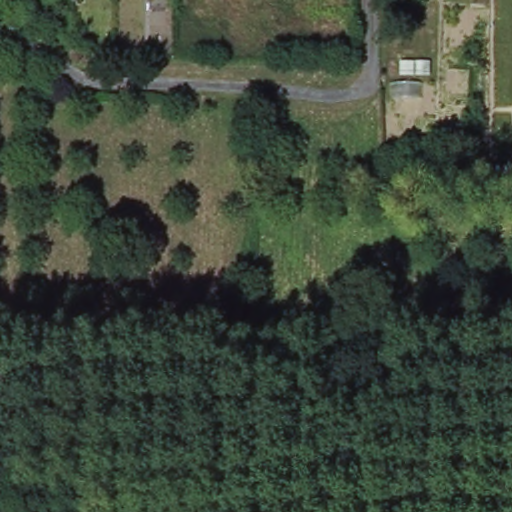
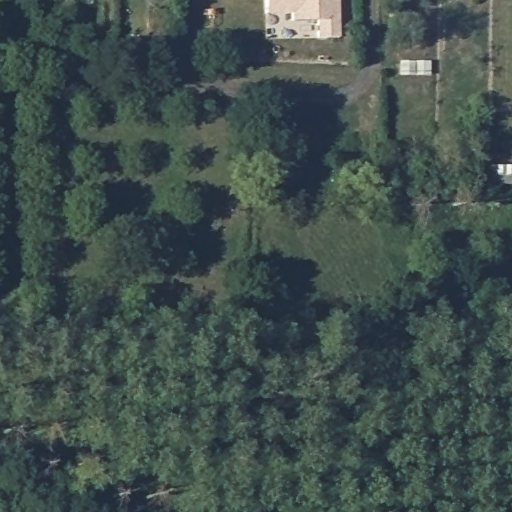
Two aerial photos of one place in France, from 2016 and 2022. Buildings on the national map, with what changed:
new [(340,37),(318,38),(317,20),(292,20),(292,12),(266,12),(266,0),(339,0),(340,37)]
unchanged [(512,167),(512,185),(488,185),(488,167),(512,167)]

